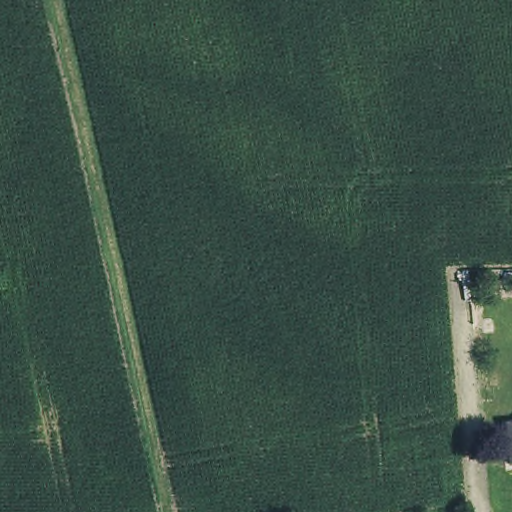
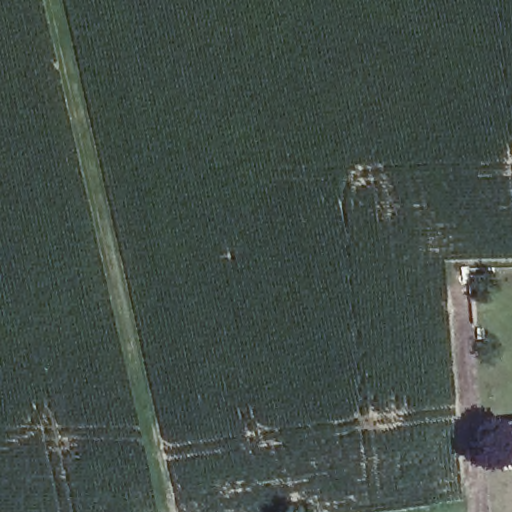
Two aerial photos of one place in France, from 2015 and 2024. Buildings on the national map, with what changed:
unchanged [(512,464),(511,465),(507,425),(512,424),(512,464)]

